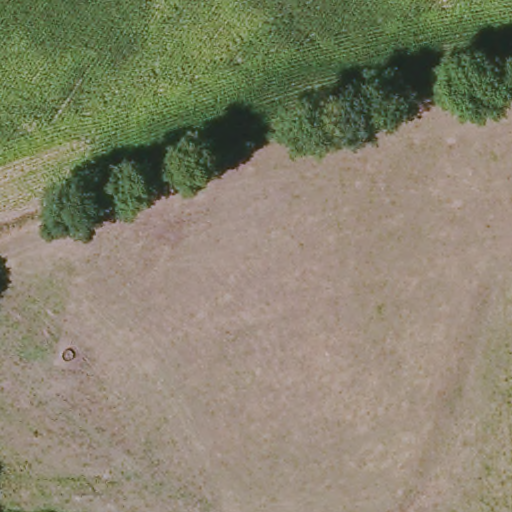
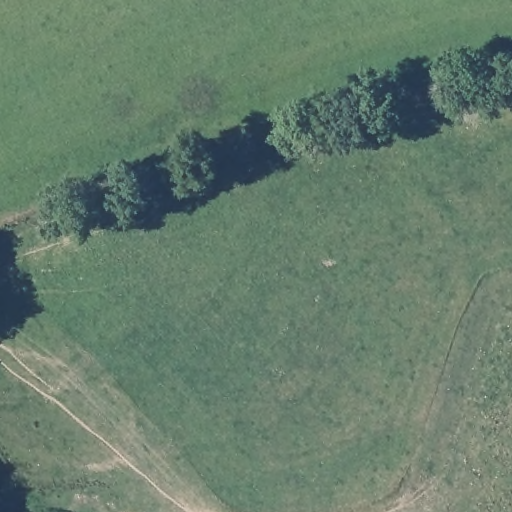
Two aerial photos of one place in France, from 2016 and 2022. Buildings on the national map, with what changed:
[]

